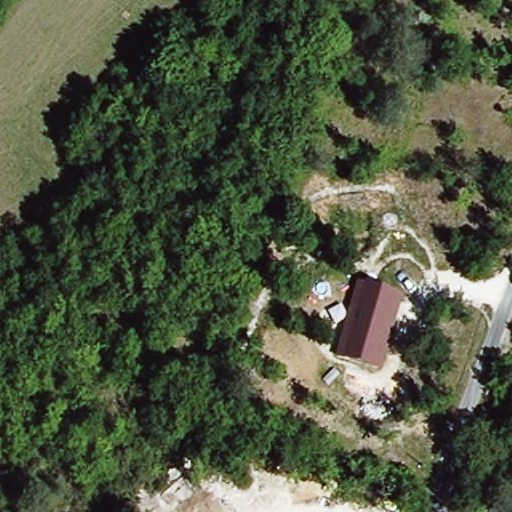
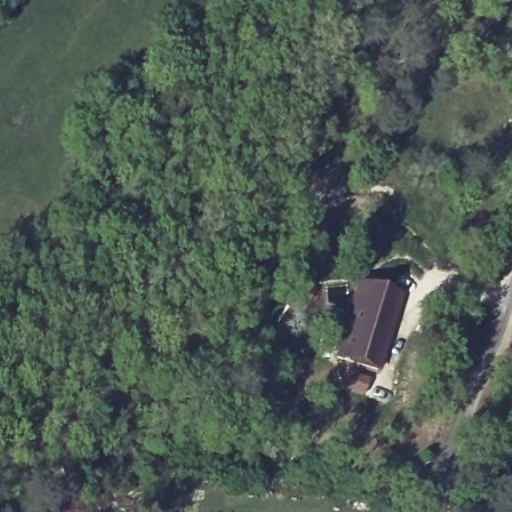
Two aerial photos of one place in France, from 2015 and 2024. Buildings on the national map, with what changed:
unchanged [(376,366),(332,354),(352,282),(396,294),(376,366)]

